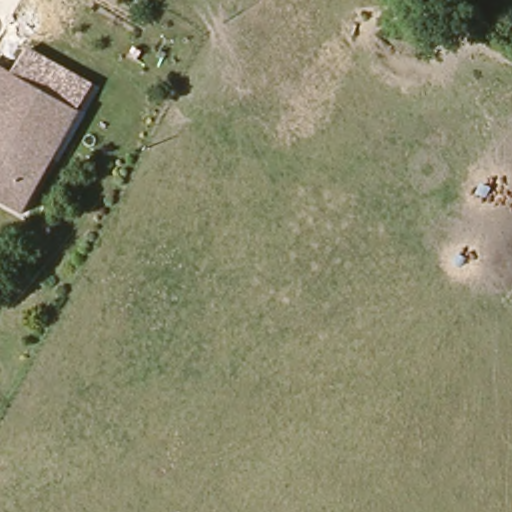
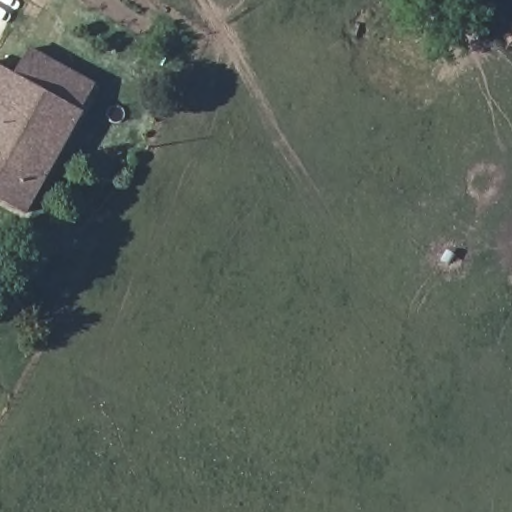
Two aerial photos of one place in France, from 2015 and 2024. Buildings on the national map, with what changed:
unchanged [(16,74),(21,63),(28,49),(95,84),(82,108),(16,74)]
unchanged [(26,214),(0,200),(0,62),(4,55),(21,63),(16,74),(82,108),(26,214)]

